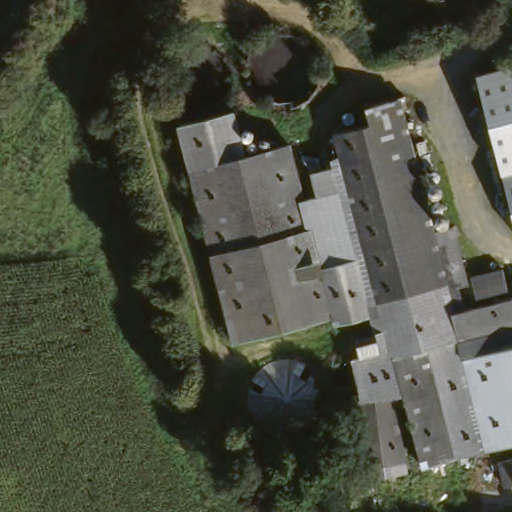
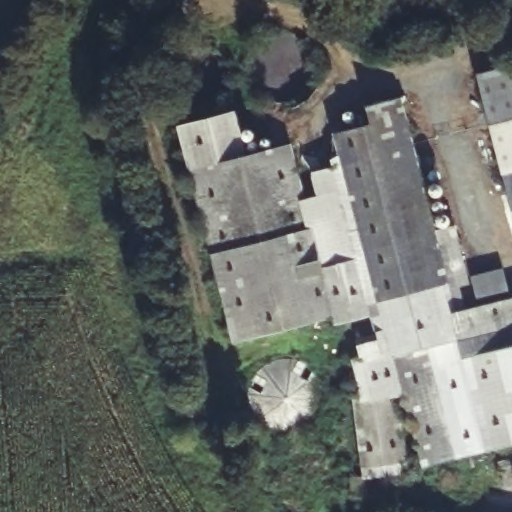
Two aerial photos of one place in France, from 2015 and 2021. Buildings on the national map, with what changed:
unchanged [(476,74),(512,64),(512,214),(476,74)]
unchanged [(209,256),(177,126),(239,110),(250,152),(290,142),(305,199),(316,196),(311,172),(333,167),(330,159),(339,157),(334,134),(369,123),(366,106),(403,97),(439,227),(456,225),(468,276),(504,267),(509,288),(512,287),(512,486),(506,487),(496,450),(457,458),(422,466),(404,395),(397,398),(409,475),(367,481),(358,403),(348,360),(359,356),(357,345),(376,340),(369,317),(333,326),(331,317),(233,343),(209,256)]

